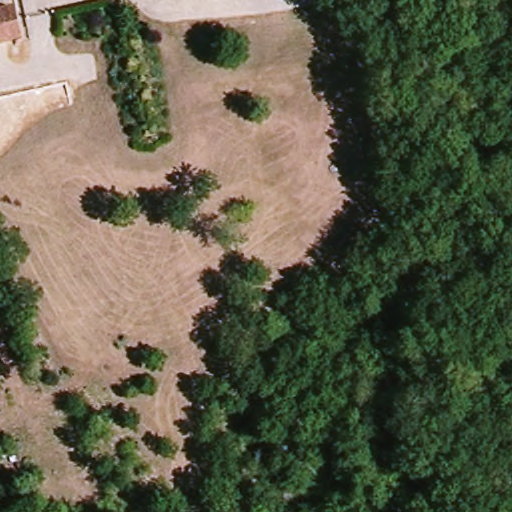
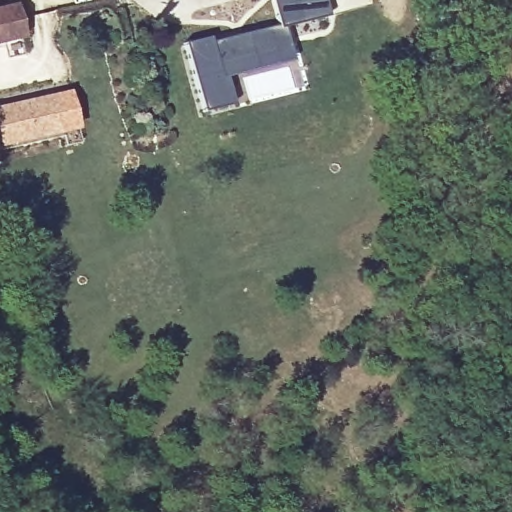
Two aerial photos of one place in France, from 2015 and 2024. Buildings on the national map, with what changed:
new [(201,112),(185,43),(209,37),(210,42),(277,25),(273,0),(325,0),(329,15),(283,26),(290,60),(225,77),(231,105),(201,112)]
unchanged [(20,40),(0,44),(0,13),(14,10),(20,40)]
new [(62,133),(0,148),(0,105),(55,94),(62,133)]

